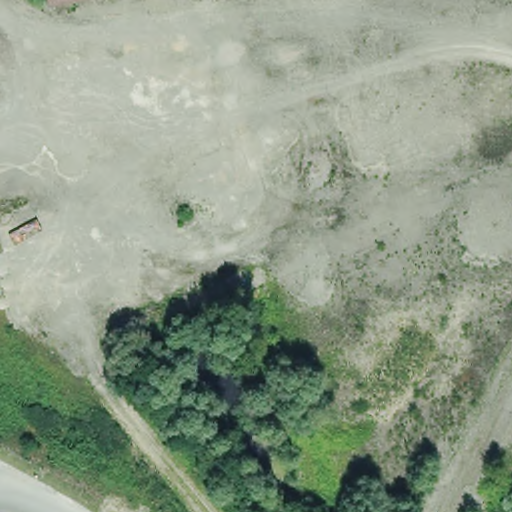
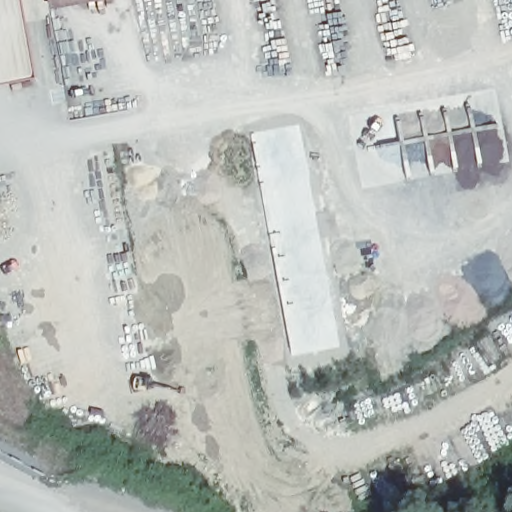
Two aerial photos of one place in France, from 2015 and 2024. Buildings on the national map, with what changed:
new [(21,23),(0,27),(0,0),(17,0),(21,23)]
unchanged [(55,9),(52,0),(95,0),(55,9)]
new [(21,23),(32,81),(0,87),(0,27),(21,23)]
demolished [(143,317),(148,326),(139,332),(134,322),(143,317)]

